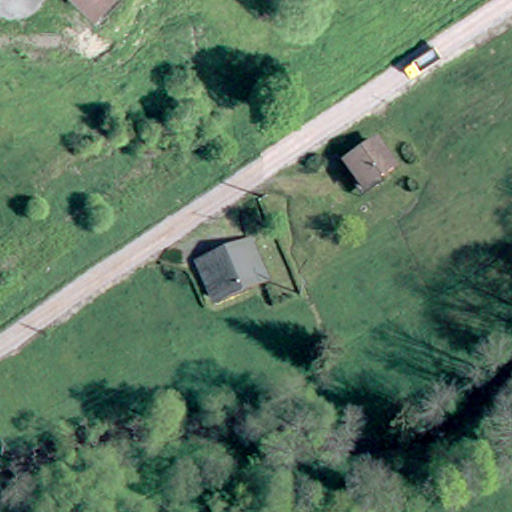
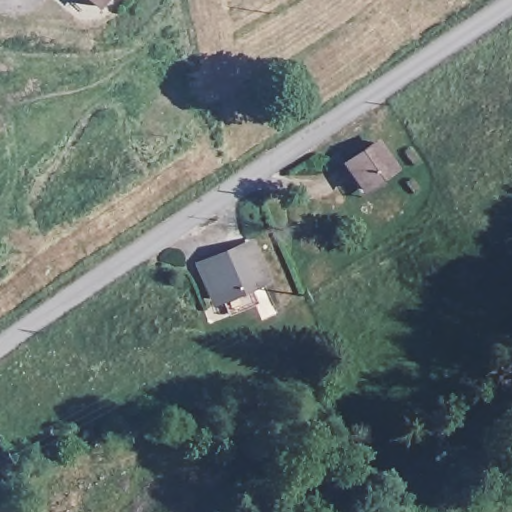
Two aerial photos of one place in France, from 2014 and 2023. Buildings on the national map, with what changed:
unchanged [(90,2),(88,0),(91,0),(90,2)]
unchanged [(376,135),(393,161),(362,182),(345,155),(376,135)]
unchanged [(235,244),(250,276),(204,297),(189,266),(235,244)]

